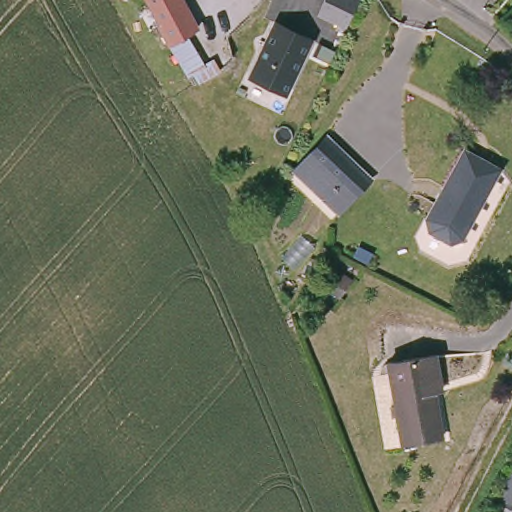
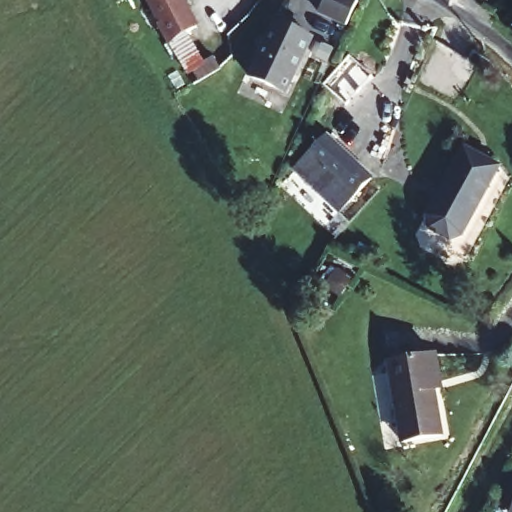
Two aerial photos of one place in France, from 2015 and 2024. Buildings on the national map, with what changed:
unchanged [(183,70),(177,74),(145,17),(151,14),(144,0),(172,0),(187,28),(176,35),(193,64),(203,58),(210,70),(189,82),(183,70)]
unchanged [(350,0),(356,3),(344,30),(316,18),(325,0),(350,0)]
unchanged [(248,82),(270,34),(272,27),(309,44),(306,51),(284,99),(248,82)]
unchanged [(291,170),(330,132),(372,177),(339,216),(291,170)]
unchanged [(505,163),(466,233),(455,236),(435,225),(431,214),(468,144),(505,163)]
unchanged [(358,229),(344,252),(332,245),(346,222),(358,229)]
unchanged [(436,391),(429,393),(437,437),(397,444),(383,364),(430,356),(435,384),(436,391)]
unchanged [(512,501),(512,512),(509,512),(506,510),(512,501)]

